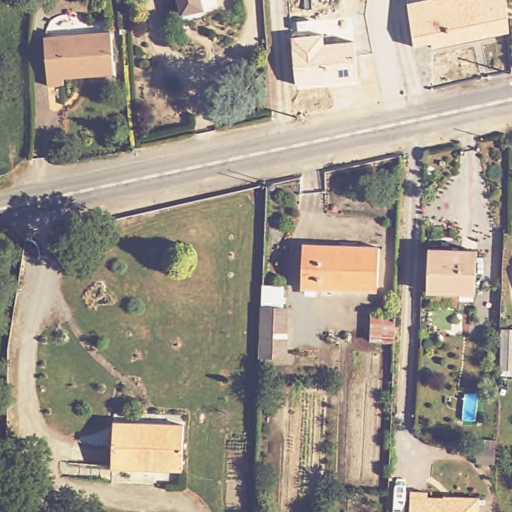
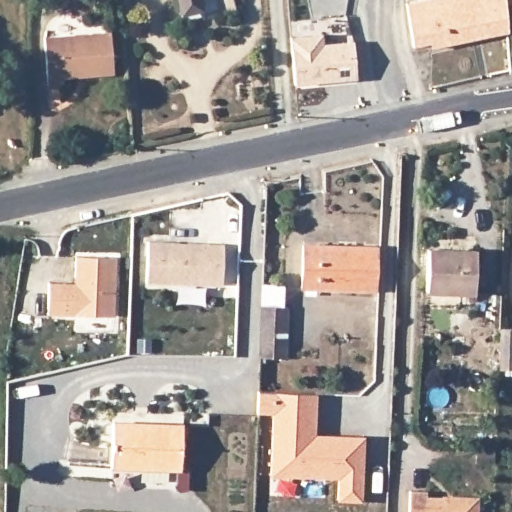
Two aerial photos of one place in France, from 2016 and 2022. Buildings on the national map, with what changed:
unchanged [(182,12),(179,0),(199,0),(200,9),(182,12)]
unchanged [(441,53),(440,47),(421,51),(416,27),(397,31),(394,13),(436,6),(467,0),(507,0),(512,26),(512,39),(441,53)]
unchanged [(326,42),(356,41),(357,79),(296,84),(291,36),(324,33),(326,42)]
unchanged [(67,87),(52,88),(49,42),(113,37),(116,79),(67,83),(67,87)]
unchanged [(149,241),(226,245),(222,287),(147,283),(149,241)]
unchanged [(307,251),(379,254),(377,296),(305,293),(307,251)]
new [(47,282),(75,283),(76,256),(117,258),(114,317),(46,314),(47,282)]
unchanged [(475,298),(426,296),(428,256),(477,257),(475,298)]
unchanged [(274,347),(251,346),(253,296),(277,297),(274,347)]
demolished [(381,332),(359,332),(360,307),(382,308),(381,332)]
unchanged [(507,337),(488,337),(490,311),(509,312),(507,337)]
new [(318,395),(317,433),(366,437),(362,502),(337,500),(338,480),(271,476),(273,415),(257,414),(257,392),(318,395)]
unchanged [(112,430),(183,427),(185,471),(114,475),(112,430)]
unchanged [(484,438),(483,455),(465,453),(466,438),(484,438)]
unchanged [(429,491),(428,496),(445,497),(445,495),(482,497),(481,512),(411,512),(412,490),(429,491)]

